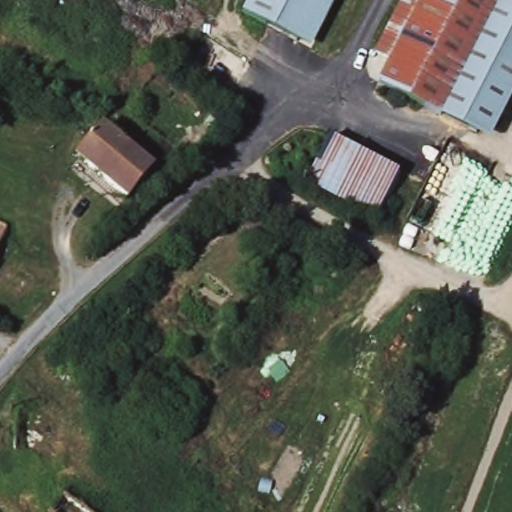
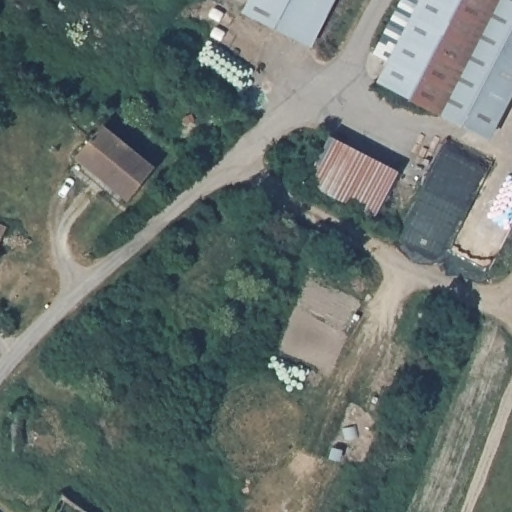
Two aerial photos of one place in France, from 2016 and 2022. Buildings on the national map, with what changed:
unchanged [(245,10),(251,0),(318,0),(298,38),(245,10)]
unchanged [(298,38),(318,0),(339,0),(315,46),(298,38)]
unchanged [(387,64),(373,56),(403,0),(506,0),(443,115),(376,80),(387,64)]
unchanged [(512,0),(512,97),(490,139),(443,115),(506,0),(512,0)]
unchanged [(102,128),(152,169),(126,199),(76,158),(102,128)]
unchanged [(325,139),(394,174),(371,219),(302,184),(325,139)]
unchanged [(11,234),(0,258),(0,228),(11,234)]
unchanged [(63,497),(86,512),(52,512),(63,497)]

